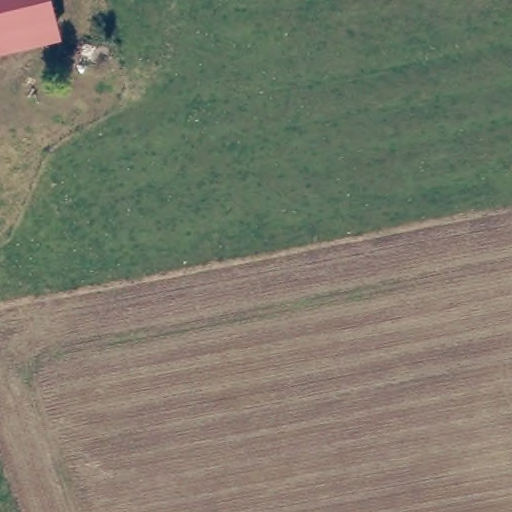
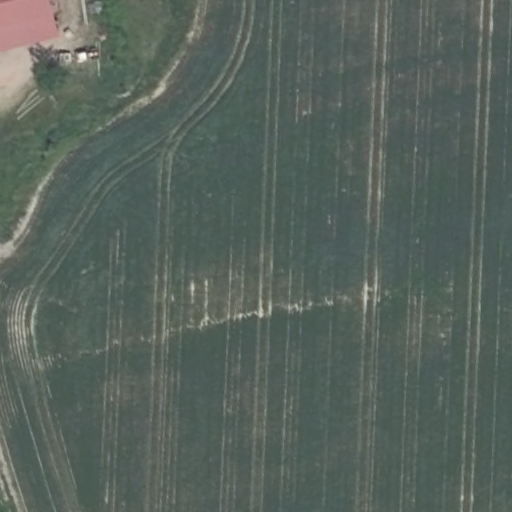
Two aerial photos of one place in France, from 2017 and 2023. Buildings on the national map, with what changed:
unchanged [(61,39),(0,55),(0,0),(51,0),(61,39)]

